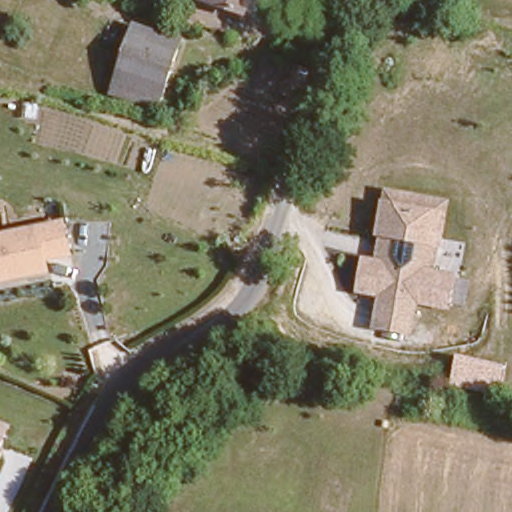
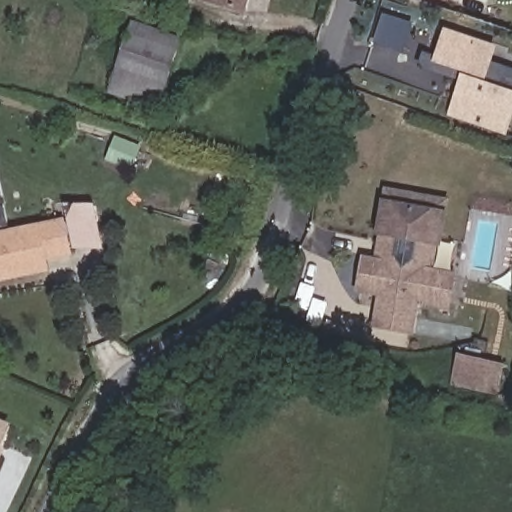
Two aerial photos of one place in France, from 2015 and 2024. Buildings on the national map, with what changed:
unchanged [(205,0),(244,0),(239,12),(205,0)]
unchanged [(146,29),(183,41),(162,107),(111,90),(123,54),(107,48),(121,5),(151,15),(146,29)]
new [(373,43),(382,15),(412,25),(403,53),(373,43)]
new [(512,87),(510,91),(512,92),(512,119),(506,136),(446,116),(461,74),(431,64),(444,28),(497,47),(489,69),(512,77),(512,87)]
unchanged [(287,79),(289,69),(305,74),(302,84),(287,79)]
unchanged [(450,309),(420,304),(414,337),(370,329),(377,296),(355,293),(362,258),(377,259),(381,239),(373,237),(385,188),(451,199),(435,270),(457,273),(450,309)]
unchanged [(66,222),(72,253),(47,259),(49,269),(0,280),(0,236),(66,222)]
new [(459,355),(500,366),(493,390),(452,379),(459,355)]
unchanged [(4,429),(0,439),(0,427),(4,429)]

